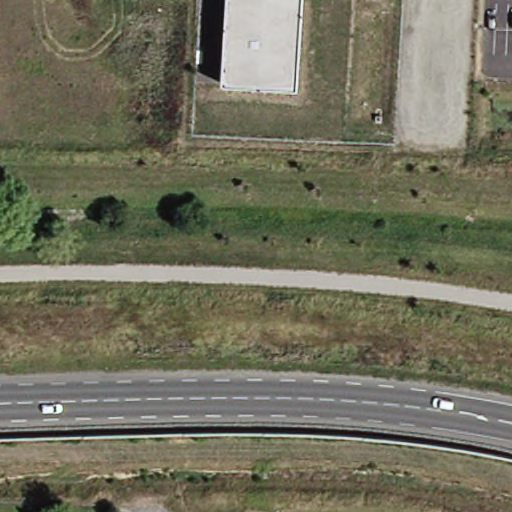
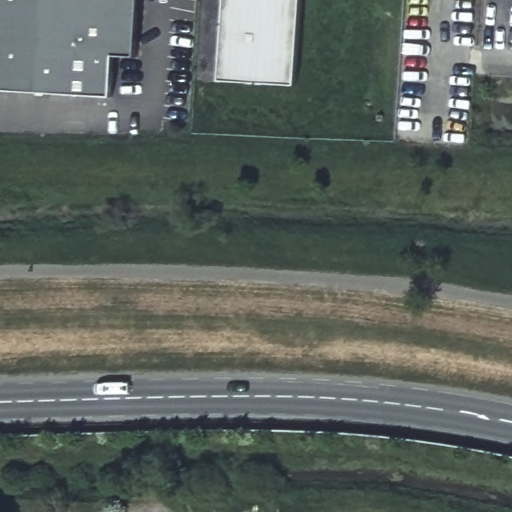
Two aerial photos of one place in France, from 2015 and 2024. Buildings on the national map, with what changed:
new [(113,100),(0,92),(0,0),(140,0),(137,60),(115,59),(113,100)]
unchanged [(303,0),(298,86),(223,81),(228,0),(303,0)]

